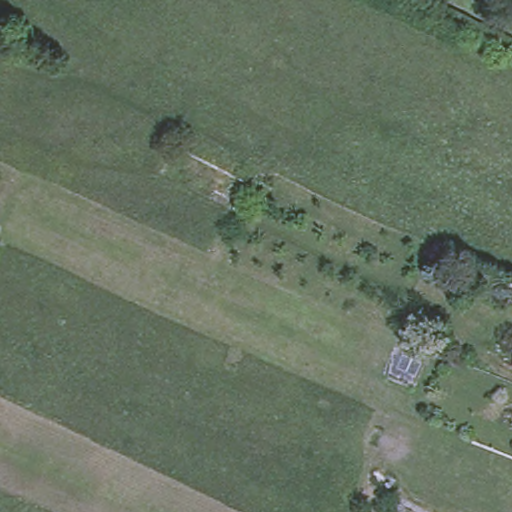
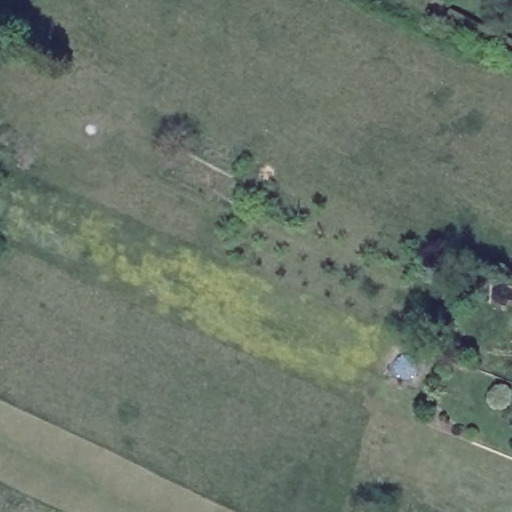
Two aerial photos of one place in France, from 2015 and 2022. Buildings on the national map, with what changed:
[]

